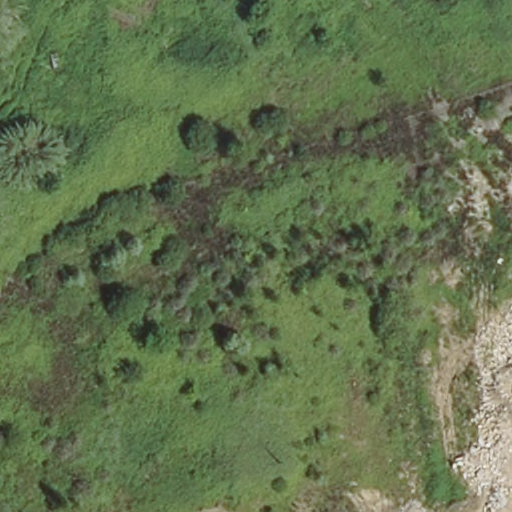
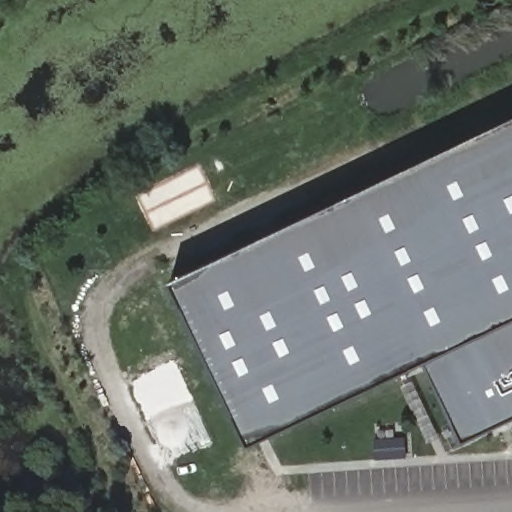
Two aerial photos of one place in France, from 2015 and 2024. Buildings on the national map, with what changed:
new [(173,276),(512,115),(512,317),(427,357),(251,441),(173,276)]
new [(427,357),(512,317),(512,417),(466,439),(427,357)]

